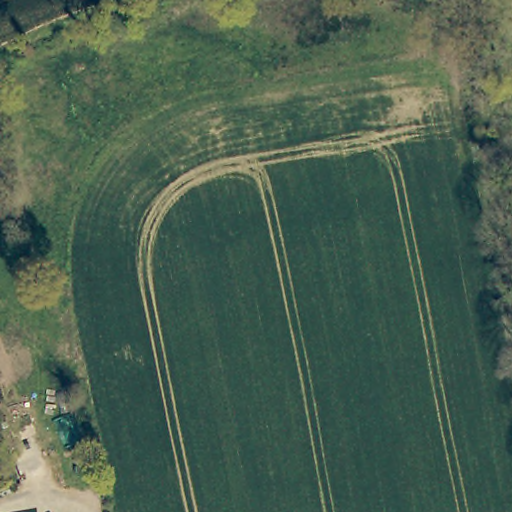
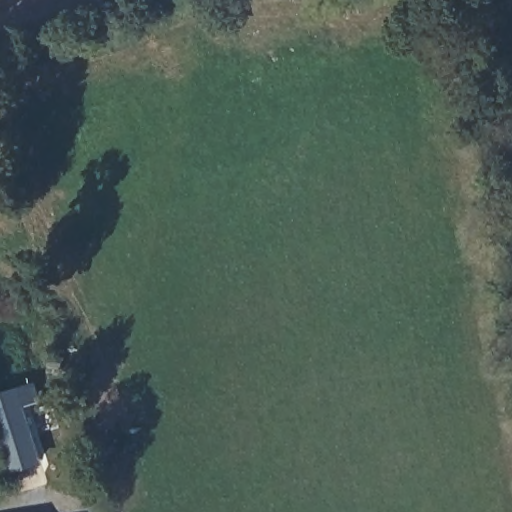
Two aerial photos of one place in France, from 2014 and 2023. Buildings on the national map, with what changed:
new [(13,473),(0,432),(0,394),(20,388),(44,464),(13,473)]

